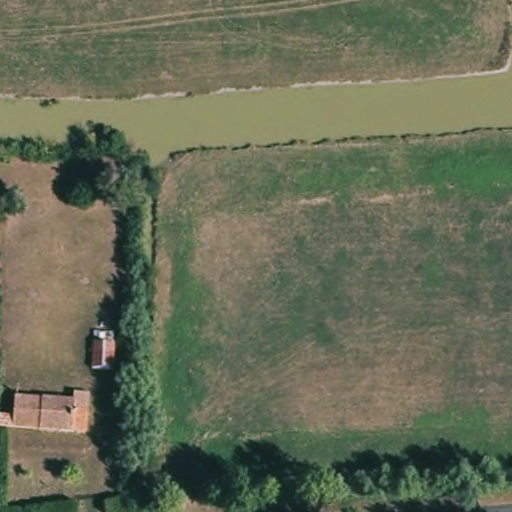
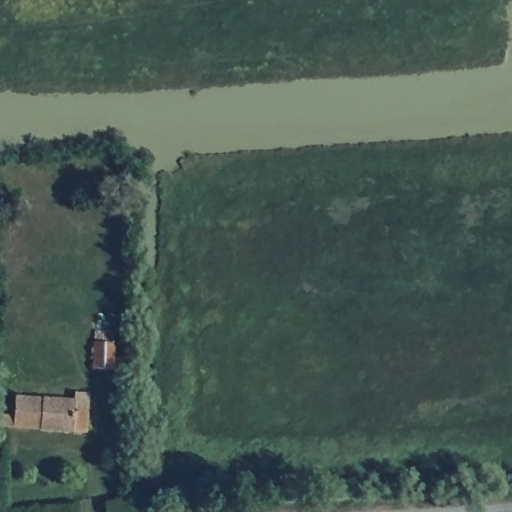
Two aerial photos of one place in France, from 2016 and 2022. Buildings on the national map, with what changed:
unchanged [(116,325),(115,351),(92,352),(93,324),(116,325)]
unchanged [(73,400),(75,393),(85,393),(86,429),(4,431),(1,403),(73,400)]

